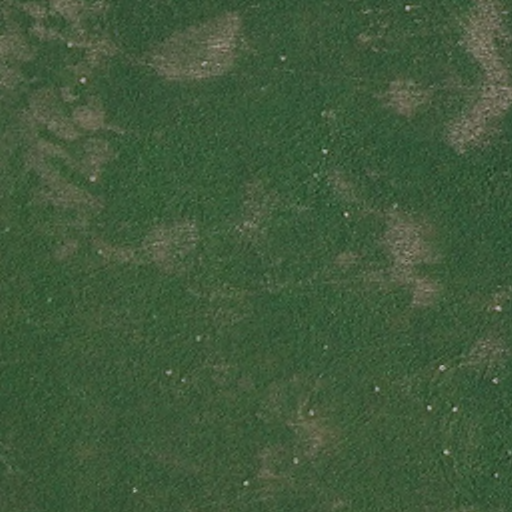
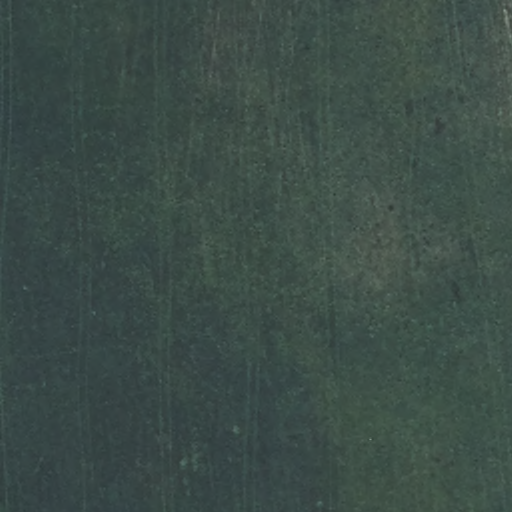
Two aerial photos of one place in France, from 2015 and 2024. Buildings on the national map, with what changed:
[]

